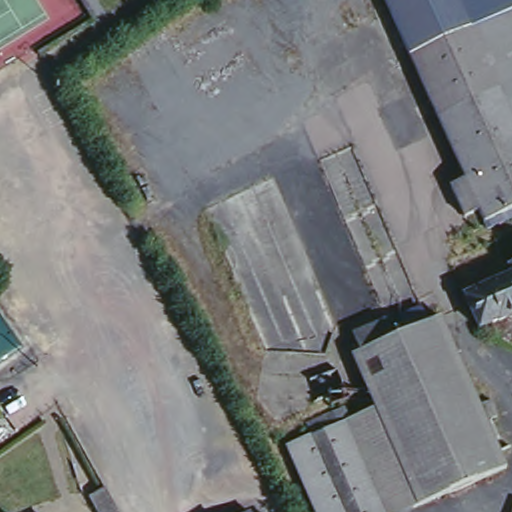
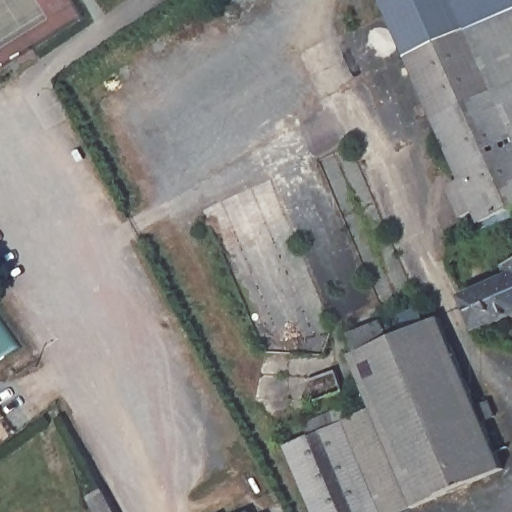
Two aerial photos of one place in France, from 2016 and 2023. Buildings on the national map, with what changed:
unchanged [(482,221),(480,215),(464,222),(450,188),(464,181),(409,56),(384,0),(512,0),(512,208),(482,221)]
unchanged [(510,271),(512,271),(512,276),(510,271)]
unchanged [(512,281),(512,317),(485,329),(471,298),(512,281)]
unchanged [(283,448),(310,436),(306,426),(341,411),(345,421),(376,408),(353,354),(361,351),(353,335),(387,320),(394,336),(406,331),(401,317),(419,310),(425,323),(442,316),(479,406),(491,401),(497,417),(485,421),(504,467),(434,497),(402,512),(311,512),(283,448)]
unchanged [(120,512),(96,512),(88,496),(106,486),(120,512)]
unchanged [(254,511),(255,512),(252,512),(254,511)]

